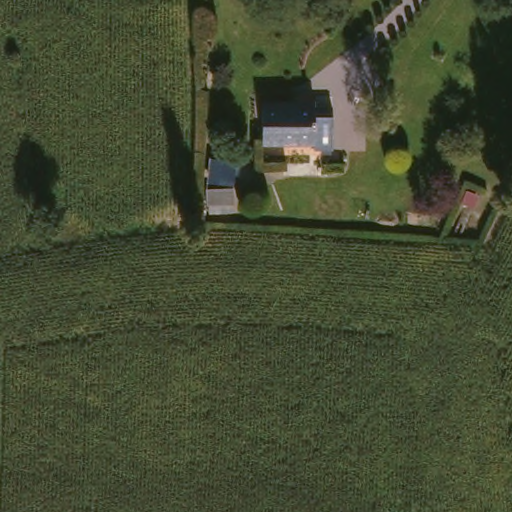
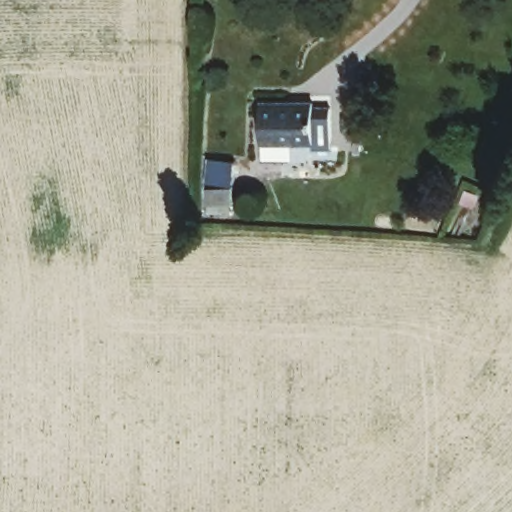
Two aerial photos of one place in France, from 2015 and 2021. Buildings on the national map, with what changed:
unchanged [(313,152),(313,142),(263,139),(264,98),(317,101),(317,109),(333,111),(330,152),(313,152)]

